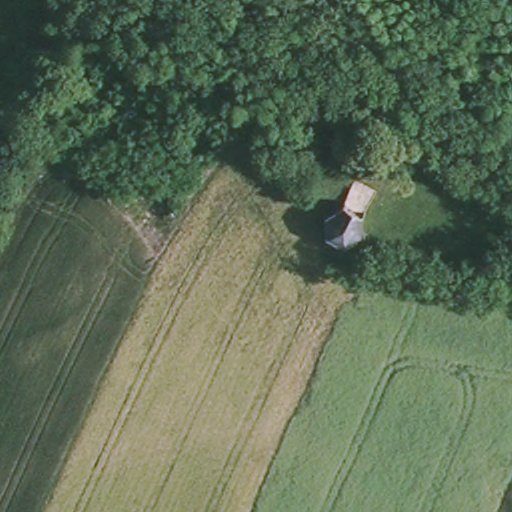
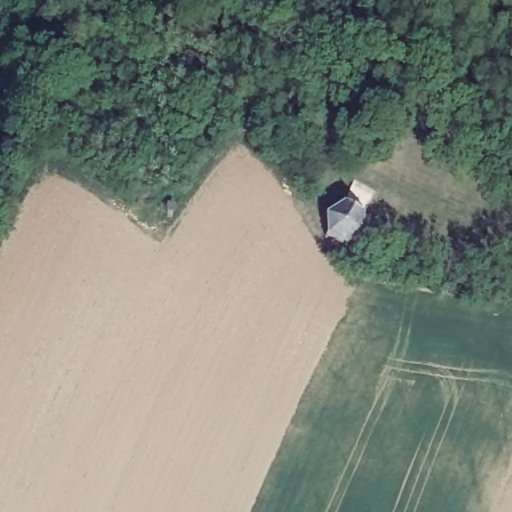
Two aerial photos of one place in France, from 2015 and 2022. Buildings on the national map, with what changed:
unchanged [(356,218),(358,236),(345,243),(330,233),(328,218),(343,210),(356,218)]

